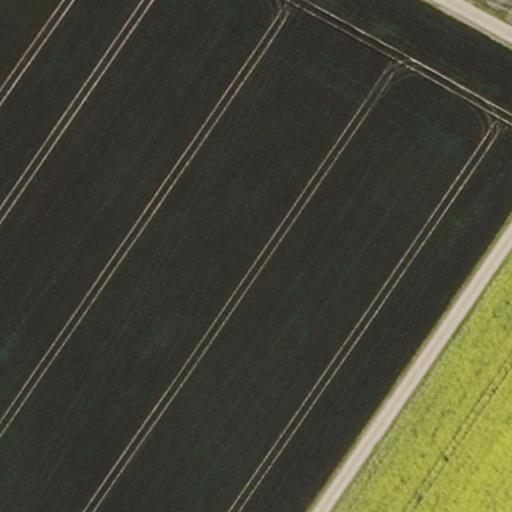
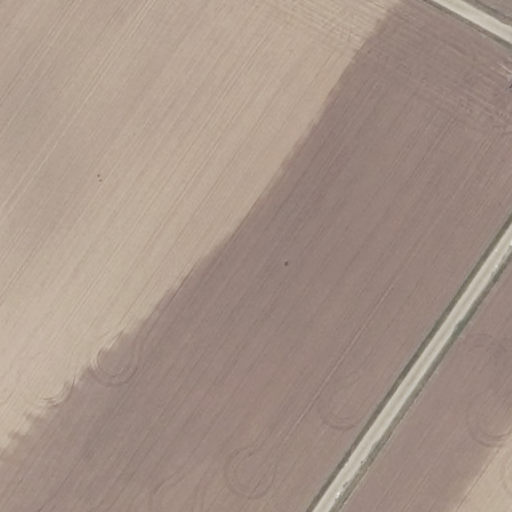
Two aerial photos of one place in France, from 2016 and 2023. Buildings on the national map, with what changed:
[]

